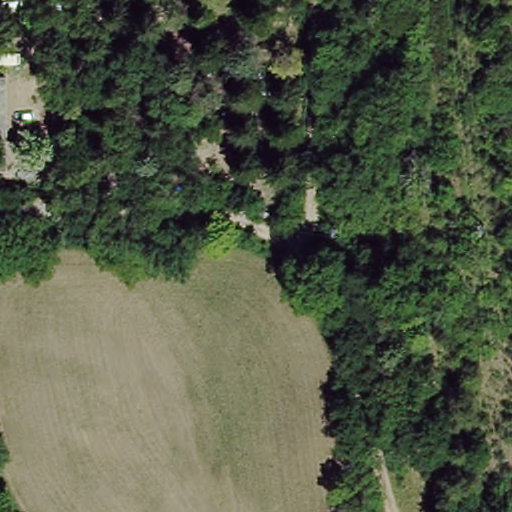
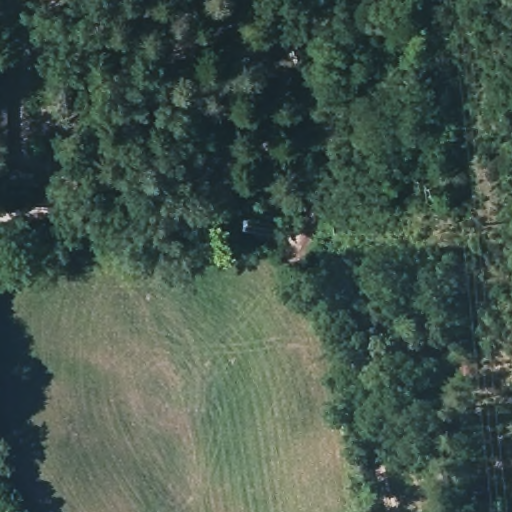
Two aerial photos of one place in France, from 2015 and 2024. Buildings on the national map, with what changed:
unchanged [(10,136),(0,137),(0,79),(10,136)]
unchanged [(110,137),(114,155),(91,158),(87,138),(110,137)]

